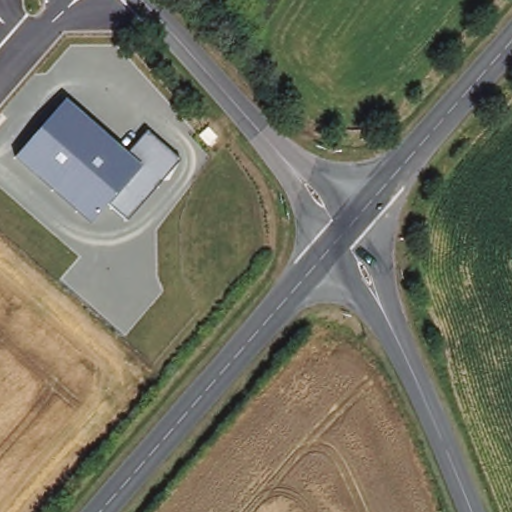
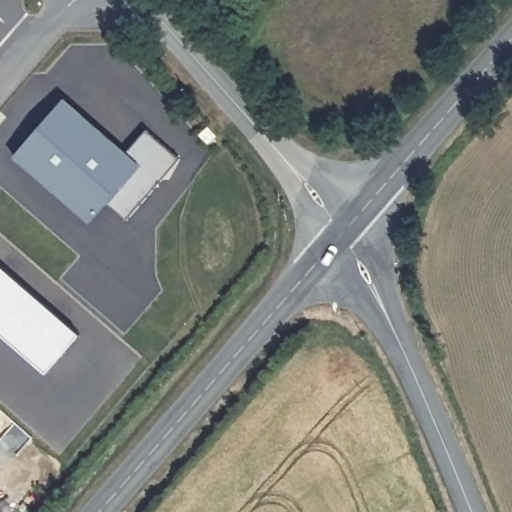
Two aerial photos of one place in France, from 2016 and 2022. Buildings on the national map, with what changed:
unchanged [(66,99),(127,152),(147,132),(180,160),(127,220),(108,204),(90,224),(15,157),(66,99)]
new [(46,375),(0,335),(0,265),(80,335),(46,375)]

